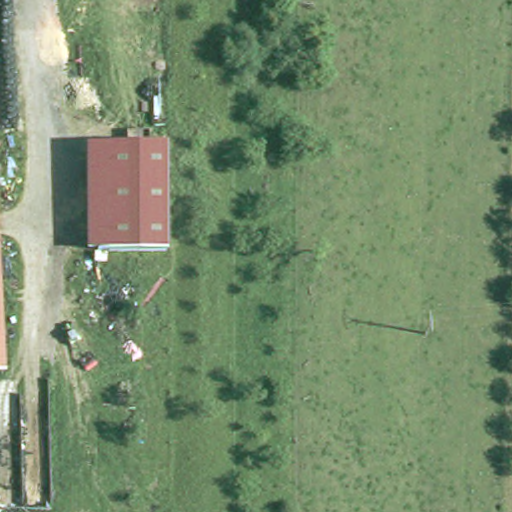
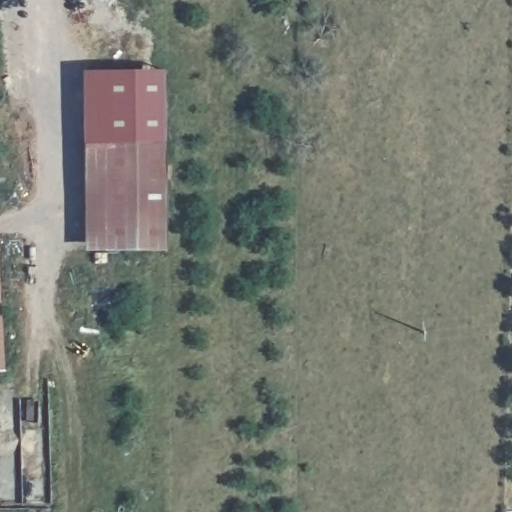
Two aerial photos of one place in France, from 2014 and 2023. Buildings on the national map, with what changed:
new [(85,71),(167,70),(166,142),(87,142),(85,71)]
unchanged [(166,142),(168,249),(85,250),(85,142),(166,142)]
unchanged [(5,371),(0,372),(0,283),(5,371)]

